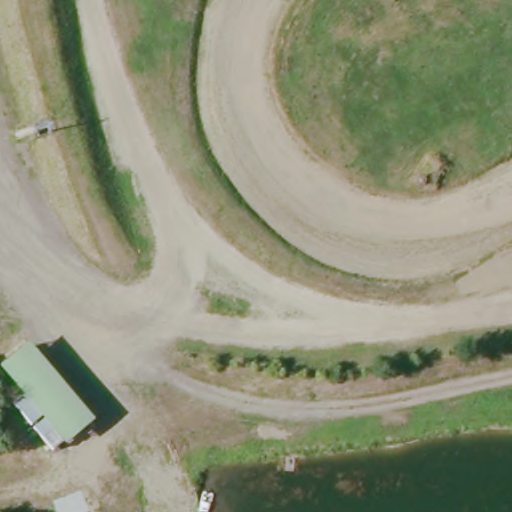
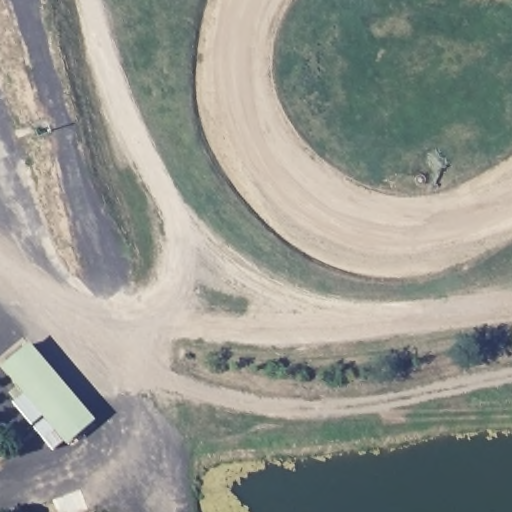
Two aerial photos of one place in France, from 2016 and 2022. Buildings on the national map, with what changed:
unchanged [(93,421),(64,445),(0,371),(0,369),(27,344),(93,421)]

